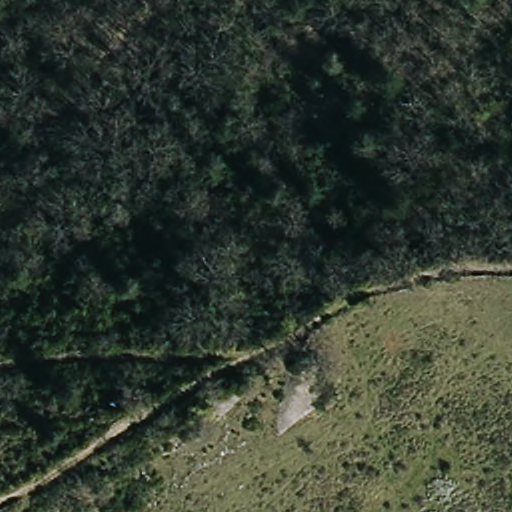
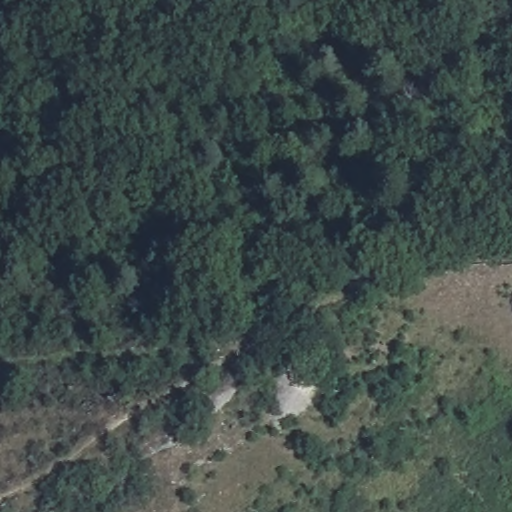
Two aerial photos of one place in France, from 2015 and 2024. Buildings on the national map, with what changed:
[]

